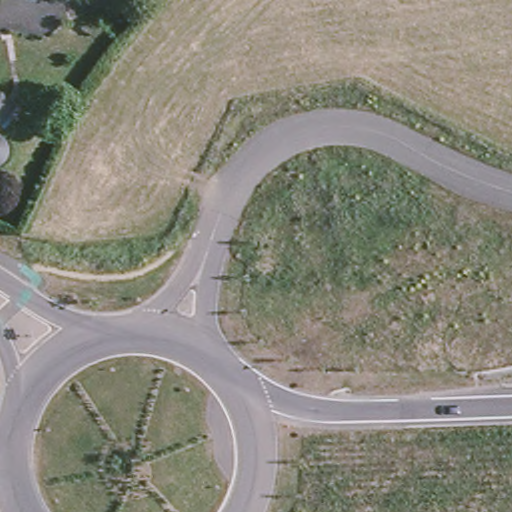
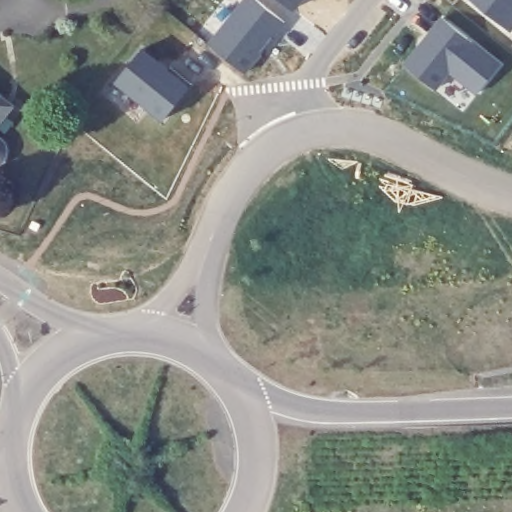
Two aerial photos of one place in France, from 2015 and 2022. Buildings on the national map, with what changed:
new [(251,0),(253,0),(285,24),(248,69),(218,44),(251,0)]
new [(301,6),(294,0),(306,0),(301,6)]
new [(479,0),(512,0),(512,25),(479,0)]
new [(502,63),(479,94),(452,72),(440,83),(417,64),(448,21),(464,34),(502,63)]
new [(186,82),(160,114),(121,81),(148,49),(186,82)]
unchanged [(8,97),(0,108),(0,91),(8,97)]
unchanged [(6,125),(8,128),(9,131),(10,135),(10,138),(9,141),(8,144),(6,147),(4,150),(2,152),(0,153),(0,120),(6,125)]

